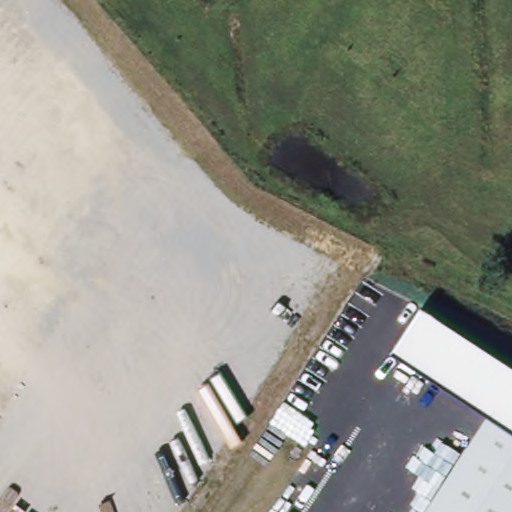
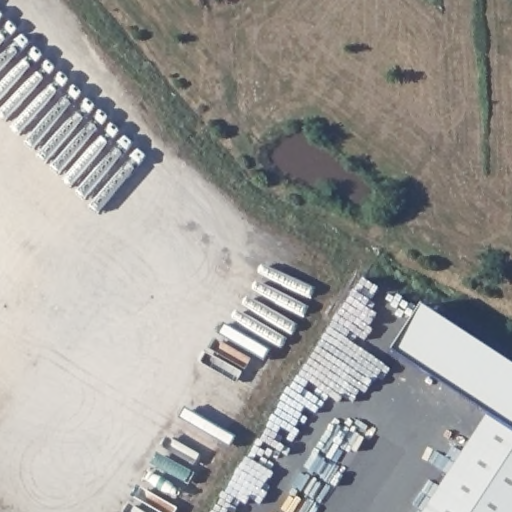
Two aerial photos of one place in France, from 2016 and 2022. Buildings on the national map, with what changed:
unchanged [(424,512),(489,413),(394,352),(423,305),(512,362),(512,512),(424,512)]

